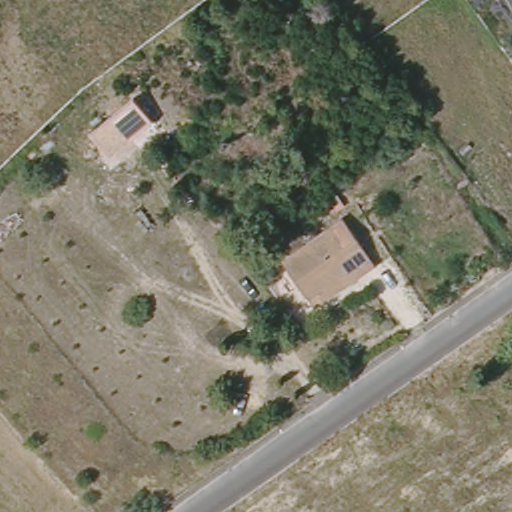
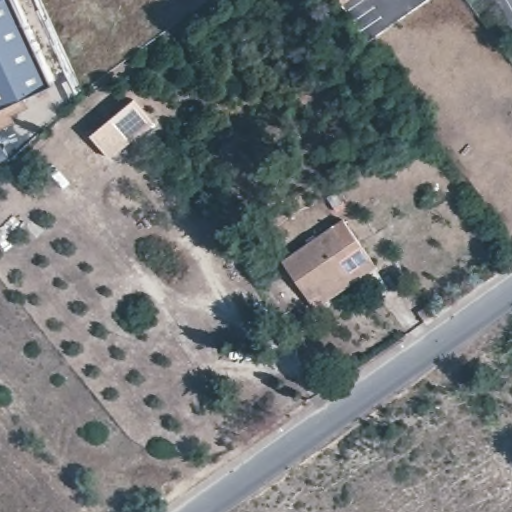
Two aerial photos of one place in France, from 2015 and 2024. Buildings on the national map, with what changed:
new [(52,84),(5,106),(0,108),(0,0),(14,0),(52,84)]
unchanged [(116,156),(95,130),(136,97),(156,124),(116,156)]
unchanged [(306,304),(281,265),(330,233),(336,241),(350,232),(375,271),(346,290),(312,312),(306,304)]

